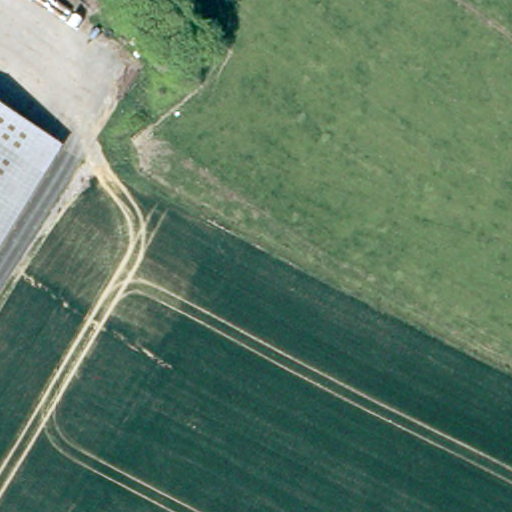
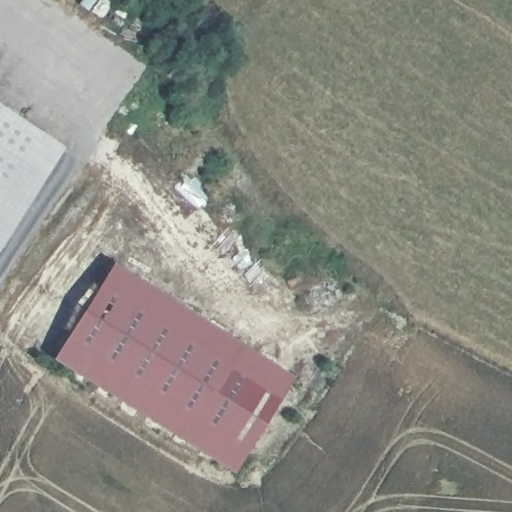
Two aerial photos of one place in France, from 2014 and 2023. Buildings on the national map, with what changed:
unchanged [(0,248),(0,104),(65,145),(0,248)]
new [(293,377),(235,473),(52,361),(110,264),(293,377)]

